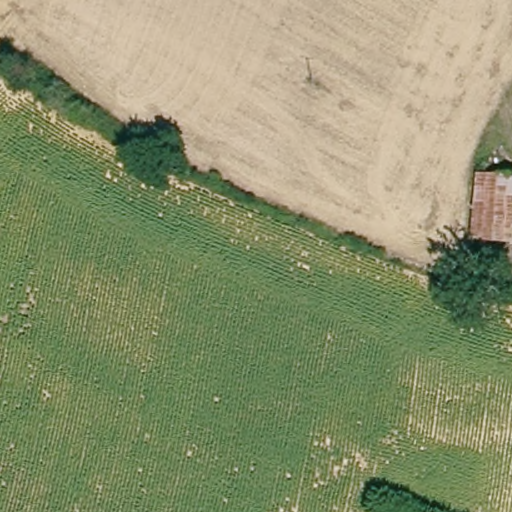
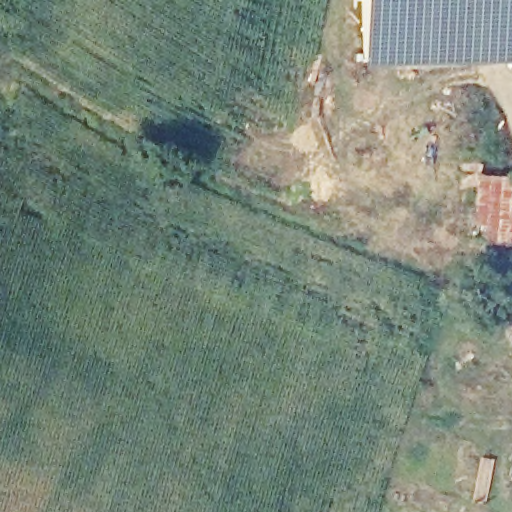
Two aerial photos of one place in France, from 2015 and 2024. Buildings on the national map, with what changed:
new [(362,67),(360,0),(512,0),(512,64),(362,67)]
unchanged [(474,239),(480,176),(512,179),(512,211),(509,242),(474,239)]

